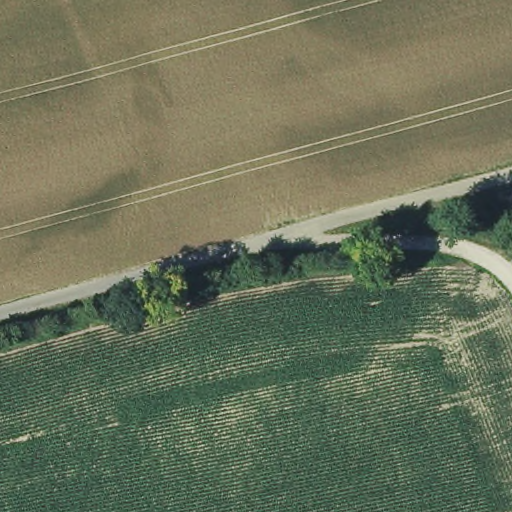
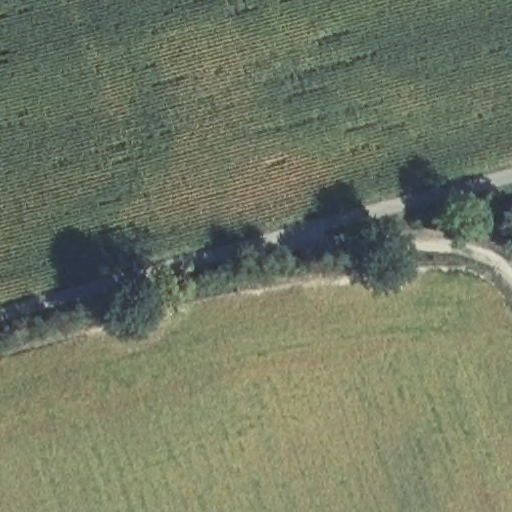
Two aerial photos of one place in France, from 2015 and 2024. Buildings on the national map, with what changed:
[]

